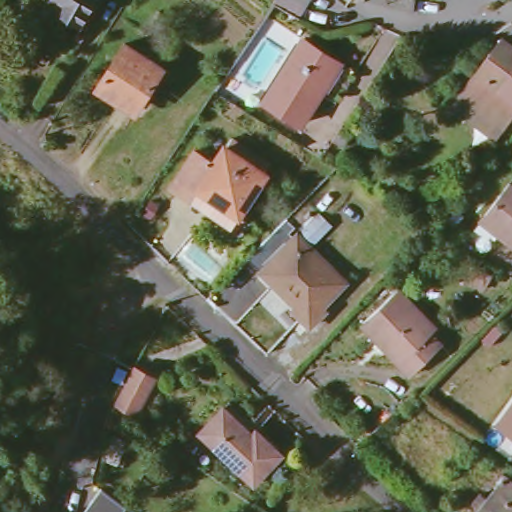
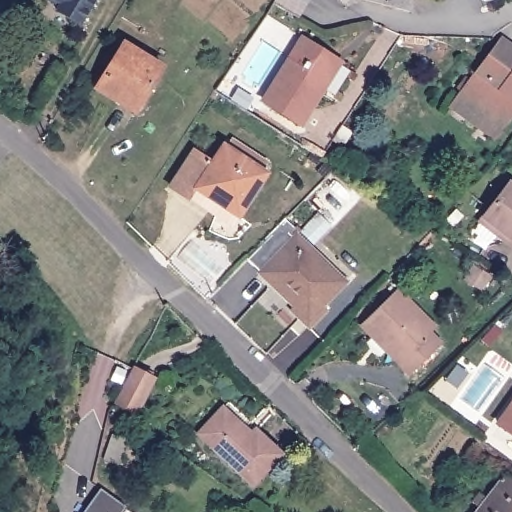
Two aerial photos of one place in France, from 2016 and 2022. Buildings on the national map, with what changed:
unchanged [(62,11),(66,5),(58,0),(100,0),(86,25),(62,11)]
unchanged [(266,16),(276,0),(309,0),(291,31),(266,16)]
unchanged [(364,0),(414,0),(412,13),(364,0)]
unchanged [(340,63),(321,93),(301,125),(264,101),(303,39),(334,59),(340,63)]
unchanged [(445,106),(452,98),(496,39),(512,51),(512,111),(497,131),(491,140),(445,106)]
unchanged [(164,69),(137,109),(120,97),(117,101),(97,89),(125,44),(164,69)]
unchanged [(352,133),(342,148),(333,141),(343,126),(352,133)]
unchanged [(266,169),(239,211),(197,184),(190,194),(172,182),(195,146),(214,159),(225,142),(266,169)]
unchanged [(483,213),(510,179),(512,180),(512,242),(507,238),(480,217),(483,213)]
unchanged [(326,231),(308,249),(296,237),(300,233),(296,229),(292,233),(286,226),(302,207),(326,231)]
unchanged [(341,288),(317,312),(322,317),(310,330),(256,279),(292,241),(341,288)]
unchanged [(367,319),(397,290),(436,329),(430,334),(441,346),(410,375),(398,363),(361,325),(367,319)]
unchanged [(133,371),(152,381),(135,414),(116,403),(133,371)]
unchanged [(195,436),(219,406),(248,430),(252,427),(280,450),(253,483),(195,436)]
unchanged [(498,424),(512,406),(512,435),(498,424)]
unchanged [(124,475),(102,474),(104,443),(124,444),(124,475)]
unchanged [(512,483),(512,512),(479,512),(481,510),(472,504),(480,494),(487,500),(506,478),(512,483)]
unchanged [(130,508),(126,512),(84,512),(102,489),(130,508)]

